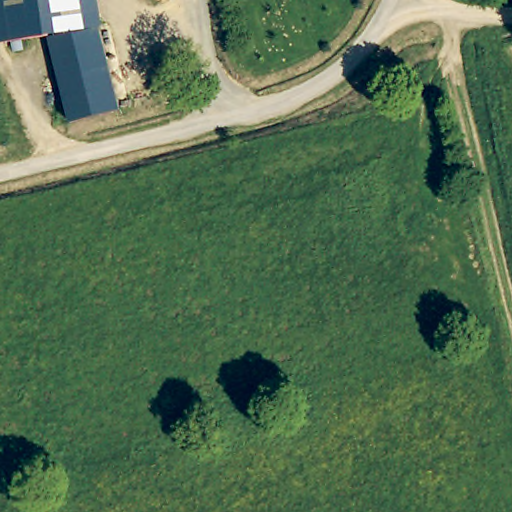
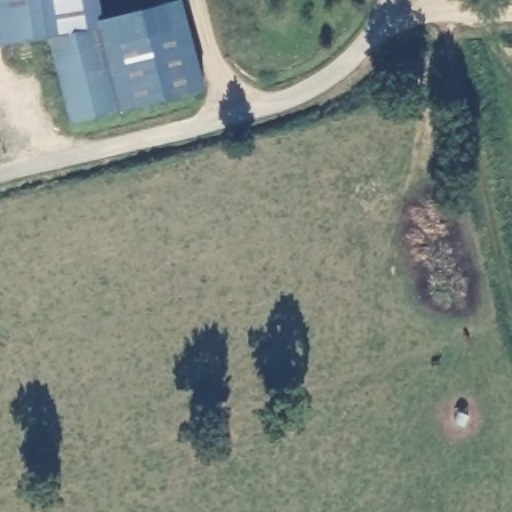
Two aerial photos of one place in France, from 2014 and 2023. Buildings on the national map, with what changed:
unchanged [(99,26),(120,111),(71,123),(49,36),(0,44),(0,0),(99,0),(103,26),(99,26)]
new [(188,25),(204,87),(120,111),(104,47),(188,25)]

